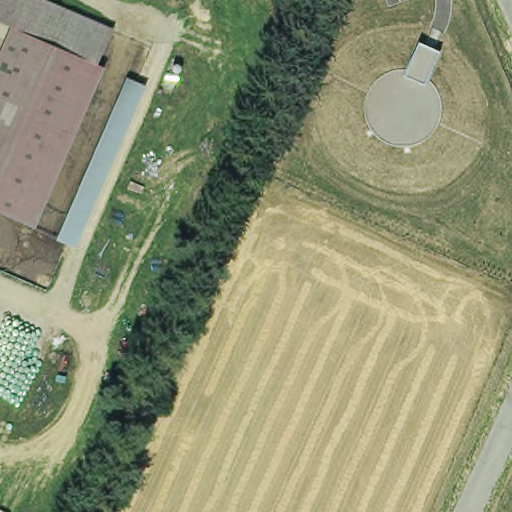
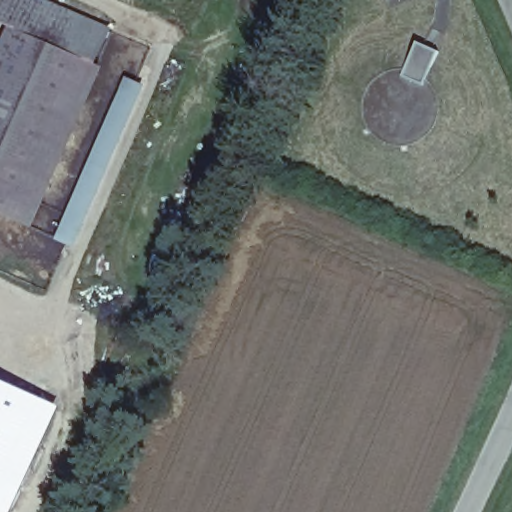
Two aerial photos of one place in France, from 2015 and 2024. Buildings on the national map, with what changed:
unchanged [(0,5),(2,0),(62,0),(112,22),(98,55),(15,19),(18,13),(0,5)]
unchanged [(0,54),(15,19),(98,55),(28,212),(0,201),(0,54)]
unchanged [(143,87),(74,244),(55,238),(124,79),(143,87)]
new [(22,512),(0,512),(0,379),(69,408),(22,512)]

